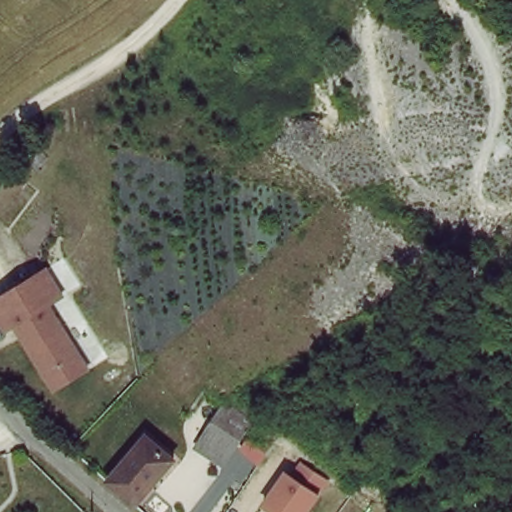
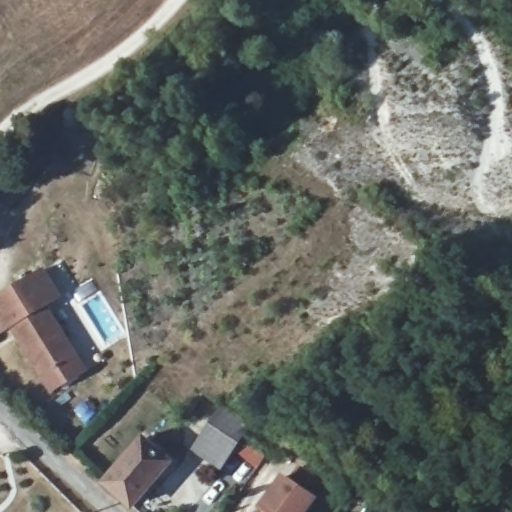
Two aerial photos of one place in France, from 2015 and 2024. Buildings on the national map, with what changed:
unchanged [(58,393),(50,381),(24,342),(16,330),(8,335),(0,323),(0,302),(46,272),(64,298),(50,308),(83,359),(92,371),(58,393)]
unchanged [(199,450),(228,409),(254,428),(227,467),(199,450)]
unchanged [(171,458),(137,502),(110,478),(144,438),(147,440),(171,458)]
unchanged [(288,478),(296,466),(325,485),(319,499),(309,512),(264,512),(259,508),(282,474),(288,478)]

